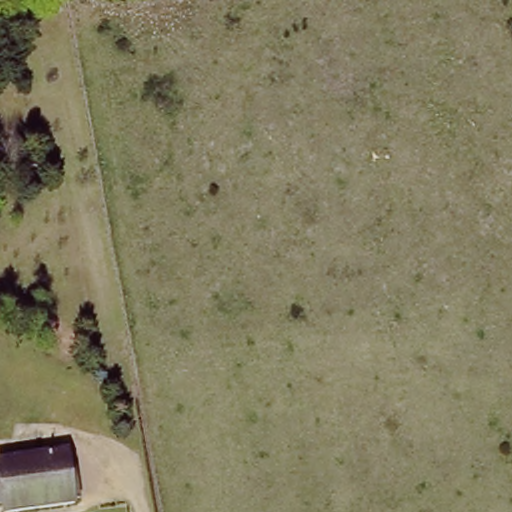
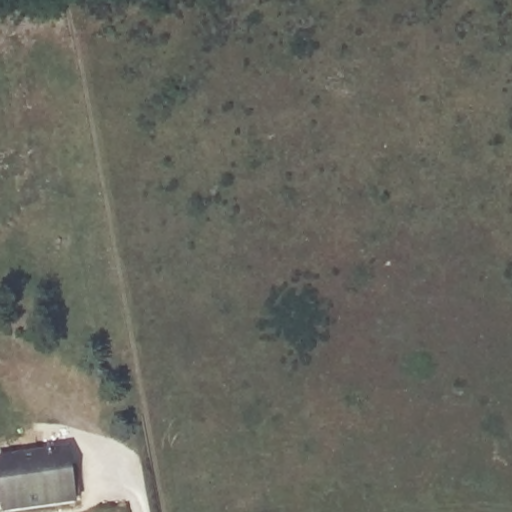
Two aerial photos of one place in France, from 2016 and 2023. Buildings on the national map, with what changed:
unchanged [(67,457),(74,505),(34,512),(4,512),(0,486),(0,467),(67,457)]

